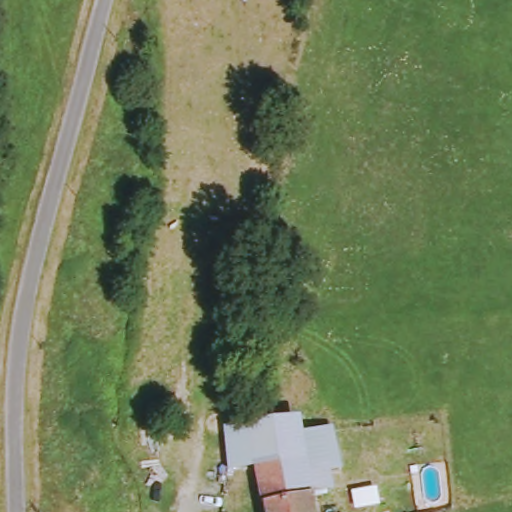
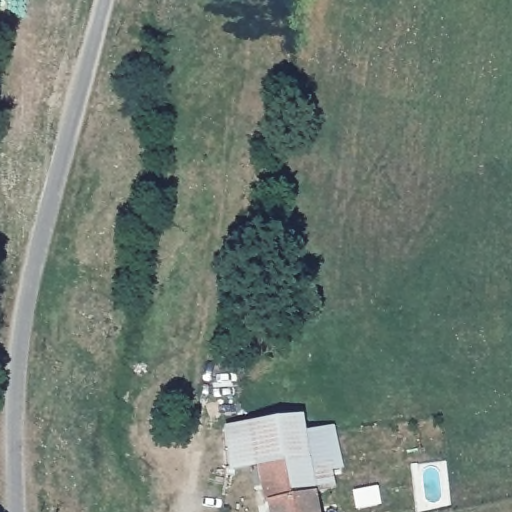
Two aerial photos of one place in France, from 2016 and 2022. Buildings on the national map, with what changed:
unchanged [(230,473),(227,433),(239,433),(296,424),(298,441),(302,441),(312,497),(314,512),(266,512),(258,468),(230,473)]
unchanged [(302,441),(336,435),(342,470),(326,473),(330,495),(312,497),(302,441)]

